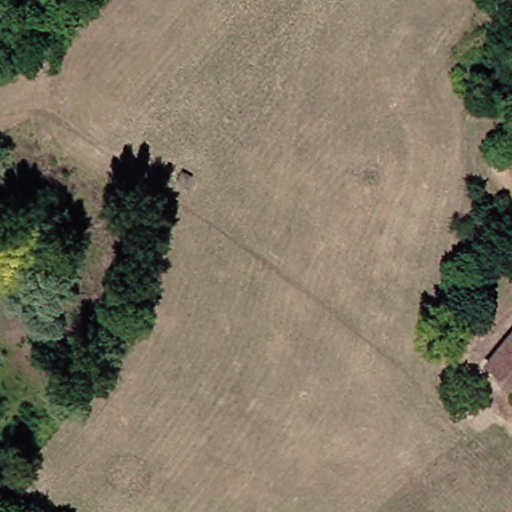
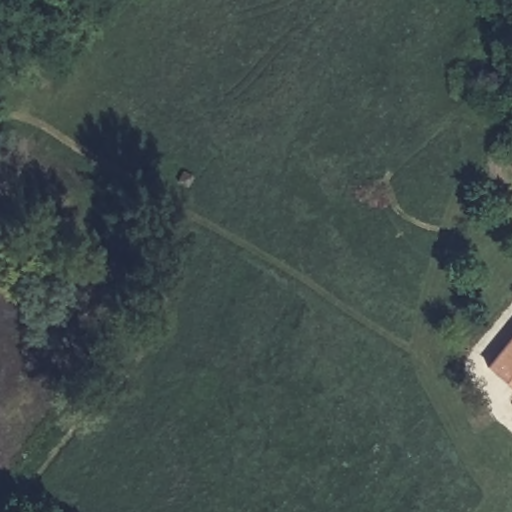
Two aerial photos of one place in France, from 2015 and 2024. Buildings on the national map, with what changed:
unchanged [(512,371),(498,360),(512,342),(512,371)]

